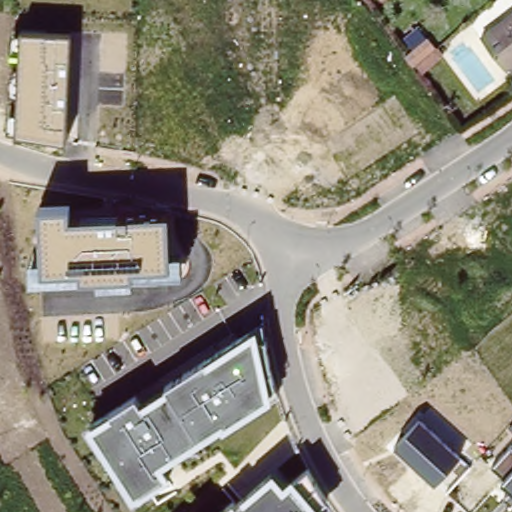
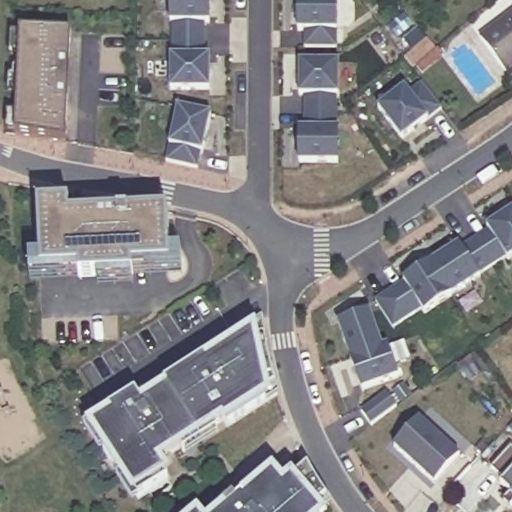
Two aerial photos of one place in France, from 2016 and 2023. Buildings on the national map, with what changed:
new [(211,0),(211,21),(206,21),(206,38),(174,38),(174,21),(171,21),(172,0),(211,0)]
new [(339,0),(338,46),(306,45),(306,29),(300,29),(300,0),(339,0)]
unchanged [(512,59),(493,34),(512,20),(512,59)]
unchanged [(16,135),(20,31),(71,34),(66,144),(16,135)]
new [(172,54),(174,54),(174,38),(206,38),(206,54),(211,54),(211,88),(172,88),(172,54)]
new [(301,60),(340,61),(340,94),(338,94),(338,111),(306,111),(306,94),(301,94),(301,60)]
new [(406,86),(410,92),(424,82),(443,107),(403,138),(380,107),(406,86)]
new [(180,105),(212,113),(204,151),(202,150),(199,167),(167,160),(180,105)]
new [(300,128),(305,128),(306,111),(338,111),(338,128),(340,128),(340,161),(300,161),(300,128)]
unchanged [(70,206),(71,217),(170,212),(171,253),(182,252),(184,274),(133,278),(133,285),(97,287),(97,280),(29,283),(29,259),(40,259),(38,207),(70,206)]
new [(476,238),(490,229),(488,226),(512,211),(512,257),(509,259),(507,256),(493,265),(476,238)]
new [(493,265),(480,274),(481,277),(453,294),(432,262),(460,244),(462,247),(476,238),(493,265)]
new [(376,299),(391,290),(405,281),(405,280),(432,262),(453,294),(426,313),(422,308),(409,317),(394,326),(376,299)]
new [(371,311),(383,347),(352,359),(339,323),(371,311)]
unchanged [(278,389),(157,464),(167,479),(135,499),(90,427),(140,396),(146,405),(267,322),(278,389)]
new [(383,347),(388,345),(400,377),(363,389),(352,359),(383,347)]
new [(388,392),(398,405),(372,424),(362,410),(388,392)]
unchanged [(470,464),(443,494),(392,446),(420,419),(470,464)]
unchanged [(512,494),(498,483),(503,478),(491,468),(511,444),(512,445),(512,494)]
new [(232,510),(241,503),(244,506),(279,476),(291,491),(316,470),(325,486),(335,502),(323,512),(234,512),(232,510)]

